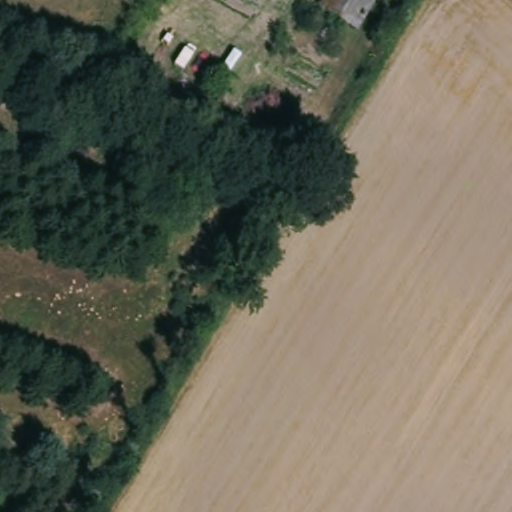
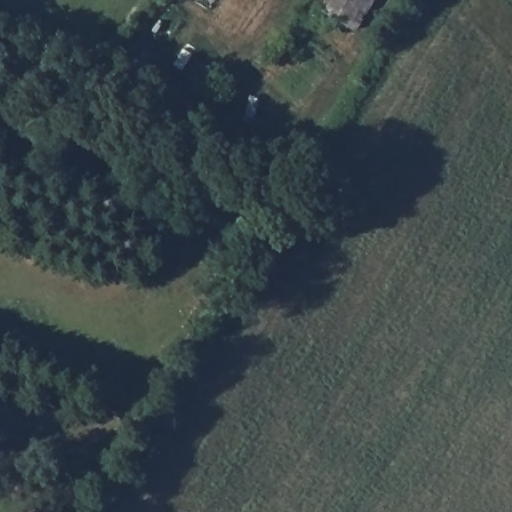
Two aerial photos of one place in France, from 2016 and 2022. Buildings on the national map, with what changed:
unchanged [(352,26),(315,3),(317,0),(368,0),(352,26)]
unchanged [(199,104),(188,125),(135,100),(148,75),(199,104)]

